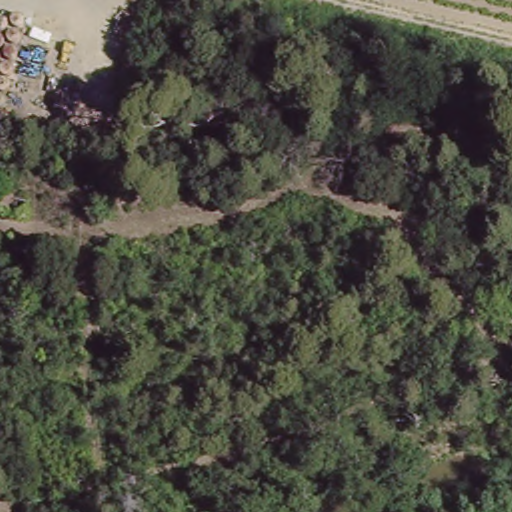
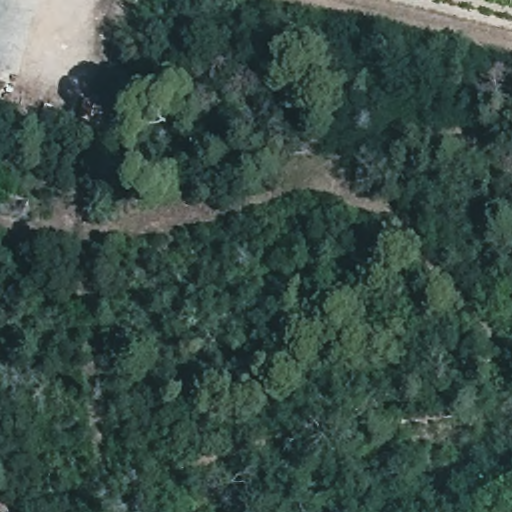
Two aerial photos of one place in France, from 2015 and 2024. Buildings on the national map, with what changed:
unchanged [(0,152),(0,9),(27,17),(0,152)]
unchanged [(4,210),(0,209),(0,193),(9,196),(4,210)]

